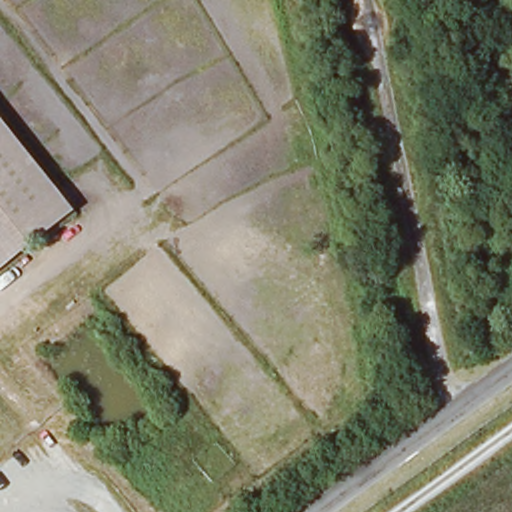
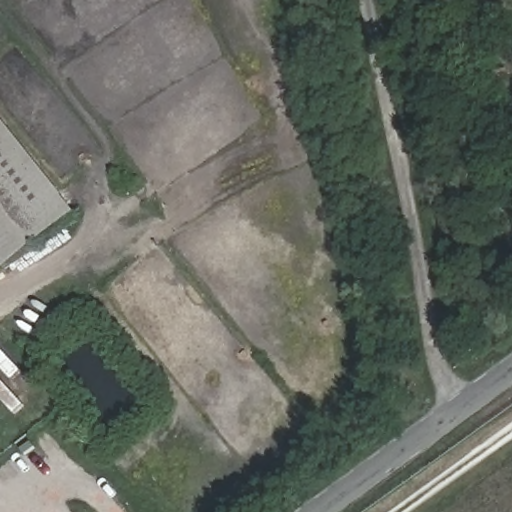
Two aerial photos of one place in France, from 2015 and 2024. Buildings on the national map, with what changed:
unchanged [(0,114),(77,210),(0,271),(0,114)]

